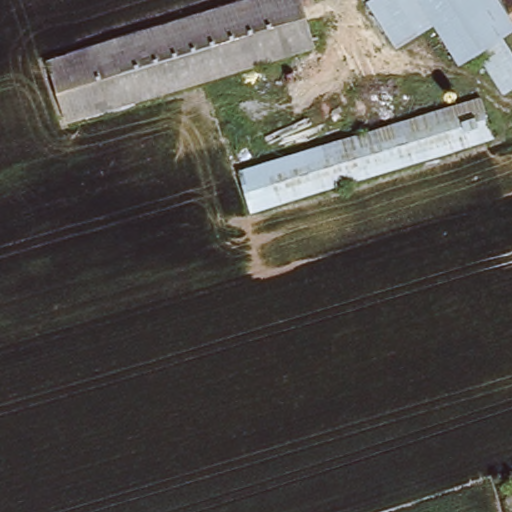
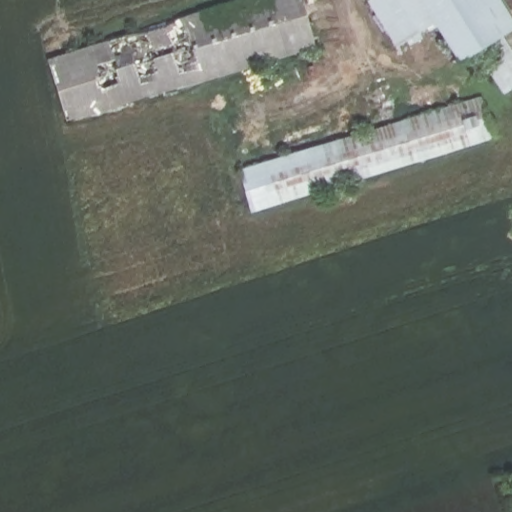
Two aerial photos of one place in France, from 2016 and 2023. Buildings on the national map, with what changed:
unchanged [(243,0),(301,0),(313,51),(65,129),(47,56),(243,0)]
unchanged [(512,51),(512,89),(502,96),(472,52),(460,63),(434,22),(393,46),(364,1),(366,0),(502,0),(512,16),(512,26),(500,32),(512,51)]
unchanged [(512,0),(512,16),(502,0),(512,0)]
unchanged [(490,133),(252,208),(240,168),(478,93),(490,133)]

